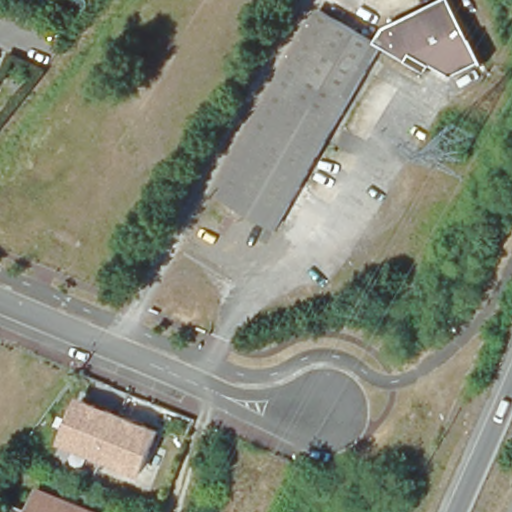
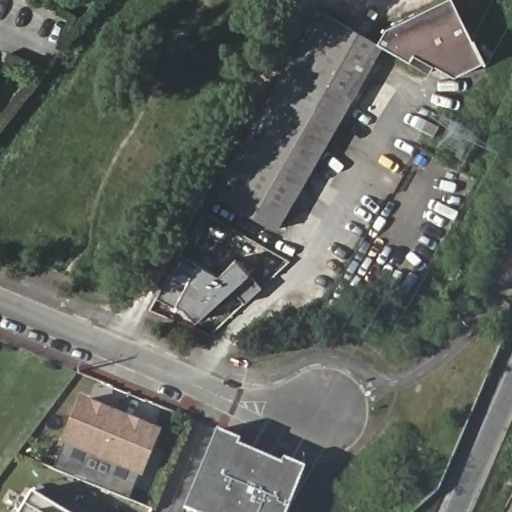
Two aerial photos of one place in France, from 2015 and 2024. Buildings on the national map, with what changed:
unchanged [(380,26),(438,0),(450,0),(482,61),(454,75),(432,63),(426,73),(376,48),(375,38),(380,26)]
unchanged [(273,89),(314,14),(349,33),(366,43),(376,48),(373,53),(334,123),(275,231),(213,197),(273,89)]
new [(180,252),(218,274),(236,257),(263,286),(245,302),(232,288),(195,321),(181,306),(177,303),(175,307),(155,296),(180,252)]
unchanged [(159,430),(139,475),(58,443),(78,398),(159,430)]
new [(287,512),(196,512),(185,508),(216,430),(241,440),(238,445),(281,462),(284,457),(305,466),(287,512)]
demolished [(40,506),(49,486),(111,511),(111,512),(26,512),(27,509),(21,507),(24,498),(40,506)]
new [(31,491),(66,512),(19,512),(31,491)]

